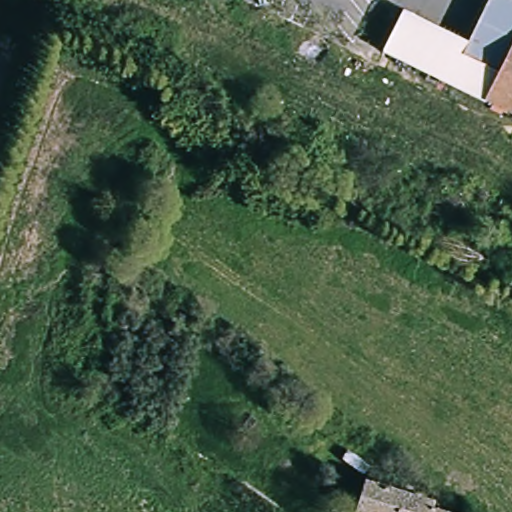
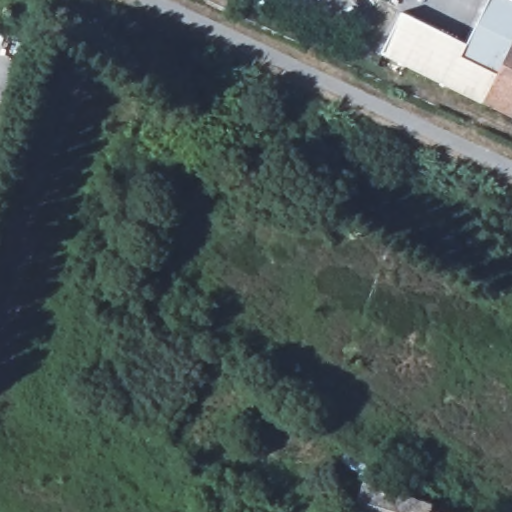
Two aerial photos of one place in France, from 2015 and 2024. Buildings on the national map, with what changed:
unchanged [(487,0),(512,0),(512,116),(485,102),(482,100),(480,103),(378,51),(399,11),(464,44),(487,0)]
unchanged [(362,482),(428,503),(426,511),(429,512),(349,512),(362,482)]

